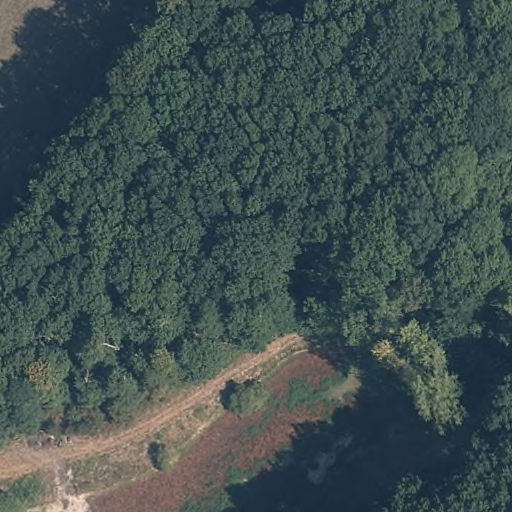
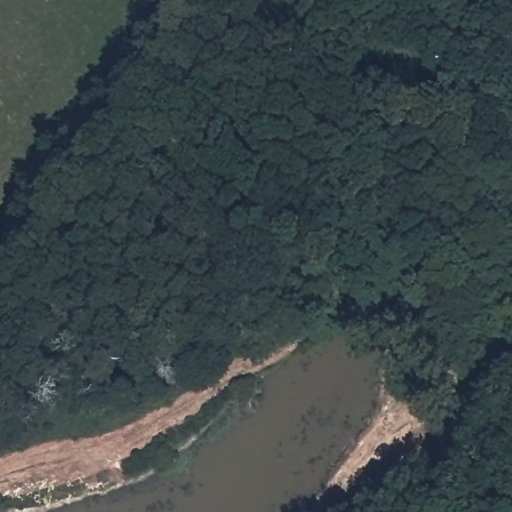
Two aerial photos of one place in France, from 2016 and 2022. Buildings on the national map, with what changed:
[]

